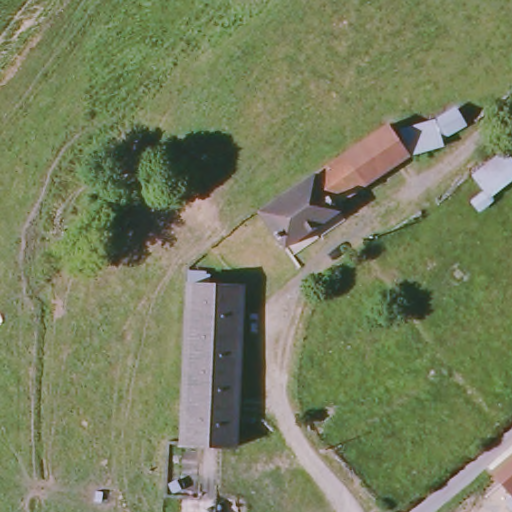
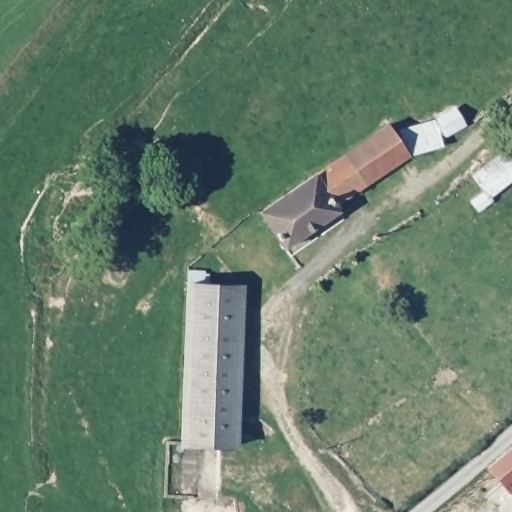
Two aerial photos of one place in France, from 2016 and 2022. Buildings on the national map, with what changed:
unchanged [(410,156),(335,204),(339,209),(284,247),(257,211),(315,171),(387,122),(393,130),(435,118),(455,106),(467,125),(441,139),(444,147),(410,156)]
unchanged [(512,189),(497,200),(498,206),(482,214),(477,204),(490,195),(474,176),(510,149),(512,152),(512,189)]
unchanged [(179,445),(185,281),(245,282),(239,448),(179,445)]
unchanged [(494,481),(512,465),(512,501),(495,484),(494,481)]

